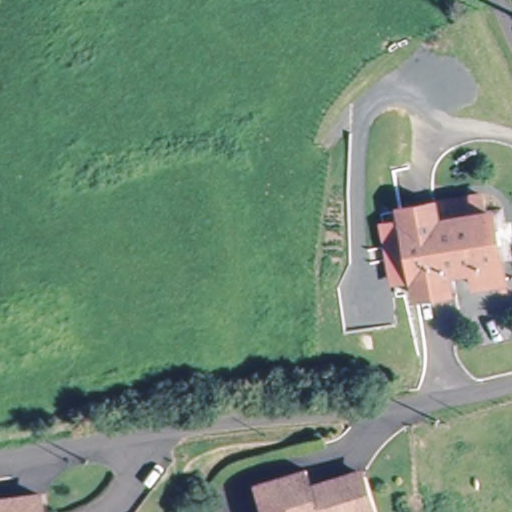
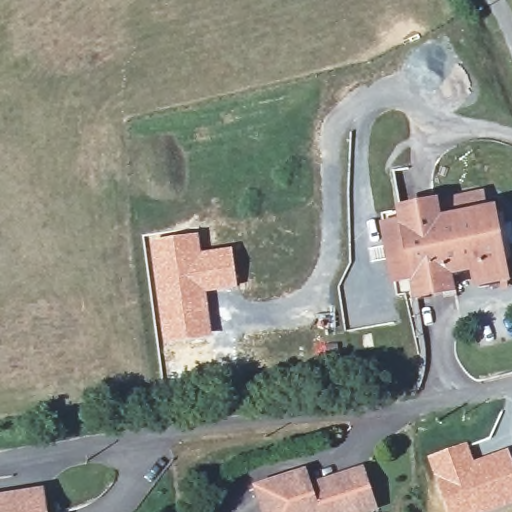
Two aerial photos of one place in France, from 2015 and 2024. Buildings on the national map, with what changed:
unchanged [(396,206),(430,201),(433,217),(487,209),(498,277),(469,281),(467,266),(442,270),(444,287),(411,290),(396,206)]
new [(199,233),(202,251),(232,247),(239,288),(207,293),(212,335),(163,343),(157,307),(148,238),(199,233)]
new [(467,441),(473,460),(508,448),(512,459),(512,503),(487,512),(448,512),(427,455),(467,441)]
unchanged [(367,510),(361,512),(261,512),(254,487),(295,476),(300,487),(356,471),(367,510)]
unchanged [(0,499),(43,491),(46,512),(0,512),(0,499)]

